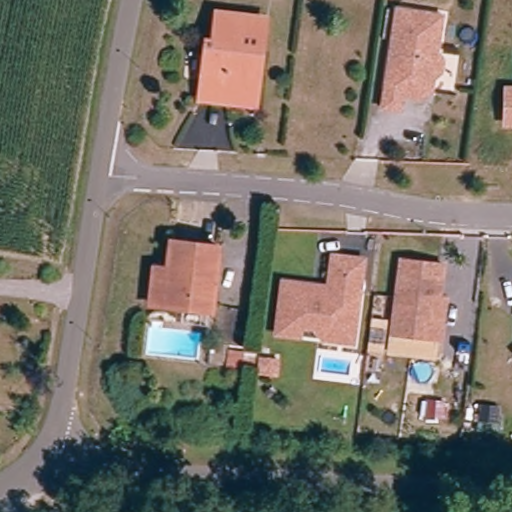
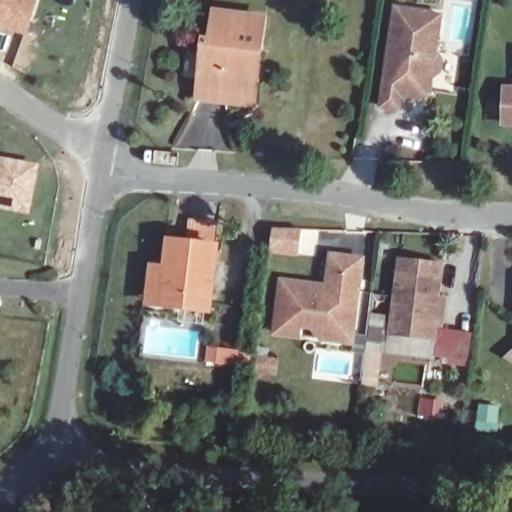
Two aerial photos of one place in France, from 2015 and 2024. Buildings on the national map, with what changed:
new [(0,31),(0,0),(37,0),(26,37),(0,31)]
unchanged [(438,77),(431,76),(429,89),(421,95),(411,94),(407,89),(402,87),(399,107),(381,105),(396,7),(441,13),(434,57),(441,57),(438,77)]
unchanged [(199,49),(208,47),(213,12),(263,15),(261,49),(249,49),(248,89),(197,87),(199,49)]
unchanged [(248,89),(249,49),(261,49),(256,104),(197,101),(197,87),(248,89)]
unchanged [(503,118),(506,83),(512,84),(512,119),(503,118)]
new [(40,165),(31,215),(0,209),(0,159),(1,157),(40,165)]
unchanged [(146,267),(168,269),(170,247),(216,251),(212,310),(165,306),(143,306),(146,267)]
unchanged [(275,335),(282,282),(328,288),(332,257),(364,261),(360,292),(354,343),(323,341),(299,337),(275,335)]
unchanged [(439,325),(438,342),(388,337),(396,261),(440,266),(436,297),(442,298),(439,325)]
unchanged [(232,367),(233,352),(261,356),(259,373),(232,367)]
unchanged [(486,411),(504,413),(502,428),(484,426),(486,411)]

